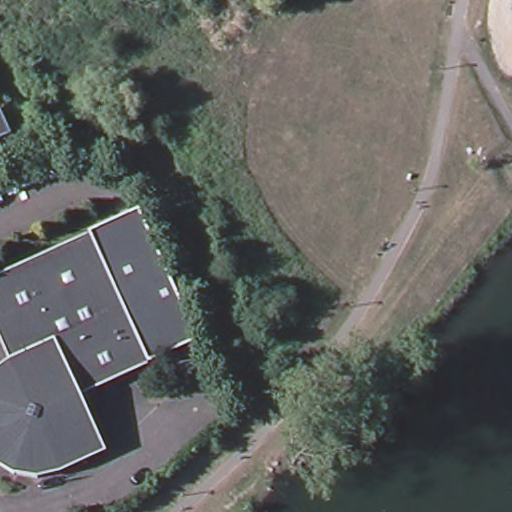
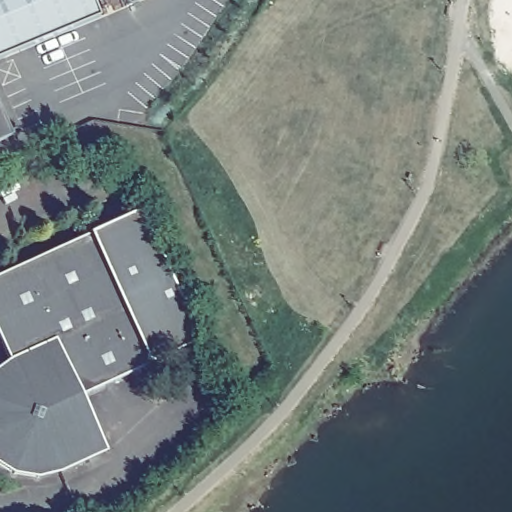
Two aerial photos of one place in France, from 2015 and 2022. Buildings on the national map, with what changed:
new [(0,56),(0,0),(97,0),(103,14),(0,56)]
unchanged [(0,138),(0,110),(10,134),(0,138)]
unchanged [(145,367),(85,237),(140,213),(200,343),(145,367)]
unchanged [(78,399),(102,452),(53,475),(33,480),(9,476),(0,471),(0,370),(7,365),(0,350),(0,276),(85,237),(145,367),(78,399)]

